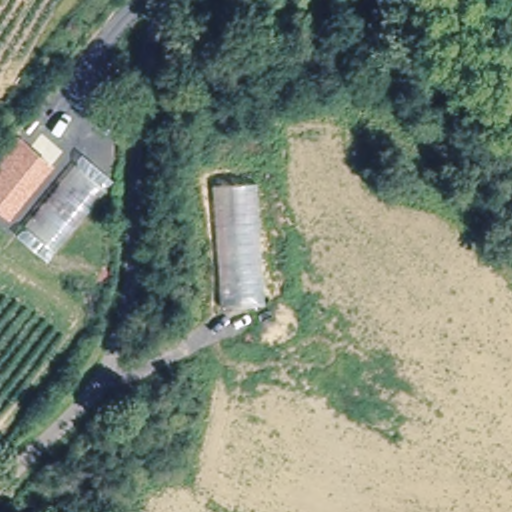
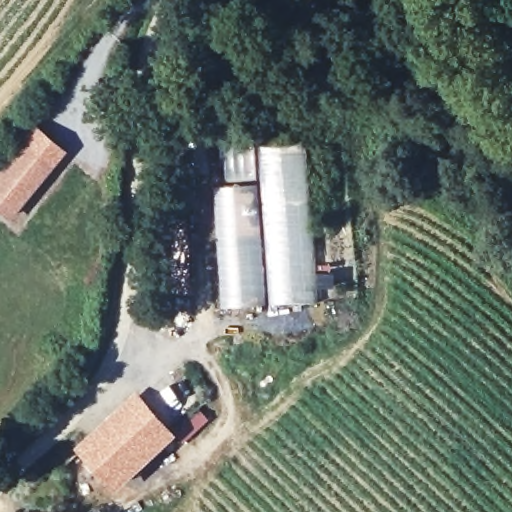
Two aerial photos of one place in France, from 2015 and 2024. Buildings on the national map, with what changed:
new [(254,130),(255,141),(306,139),(316,300),(267,302),(261,183),(227,185),(223,131),(254,130)]
unchanged [(10,219),(0,210),(0,163),(20,139),(55,165),(10,219)]
unchanged [(227,185),(261,183),(267,302),(225,306),(216,186),(227,185)]
new [(177,435),(117,490),(77,445),(137,391),(177,435)]

